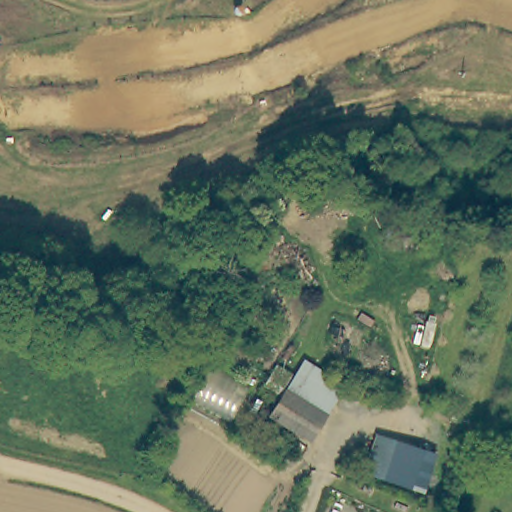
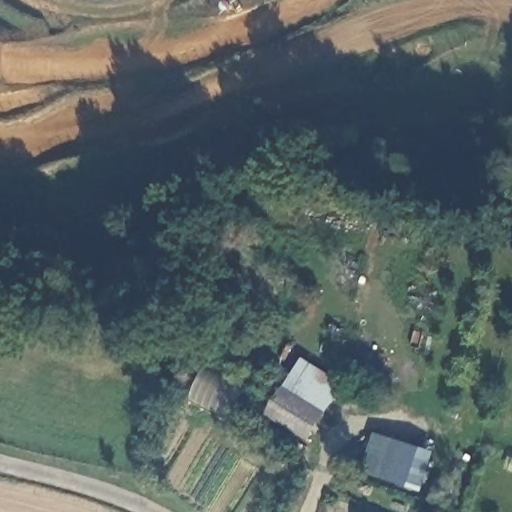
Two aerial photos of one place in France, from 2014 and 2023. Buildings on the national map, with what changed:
unchanged [(287,383),(302,359),(346,385),(333,408),(287,383)]
unchanged [(333,408),(317,438),(273,412),(287,383),(333,408)]
unchanged [(396,440),(436,454),(424,493),(382,479),(363,474),(376,434),(396,440)]

